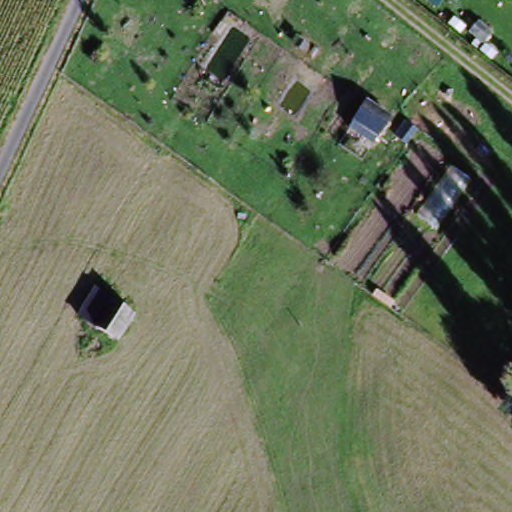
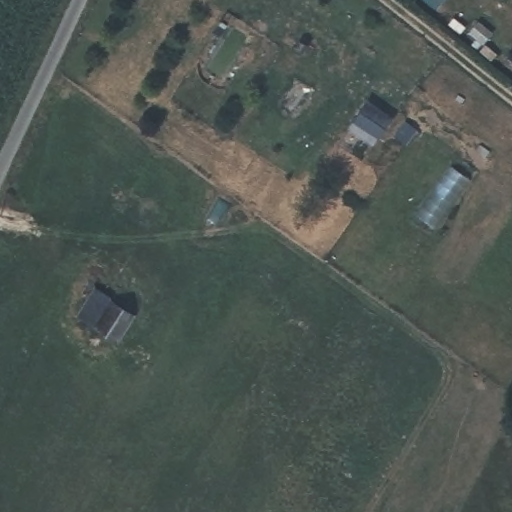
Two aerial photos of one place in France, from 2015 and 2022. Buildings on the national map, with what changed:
unchanged [(385,123),(373,140),(352,126),(363,109),(385,123)]
unchanged [(128,319),(113,344),(95,332),(112,308),(128,319)]

